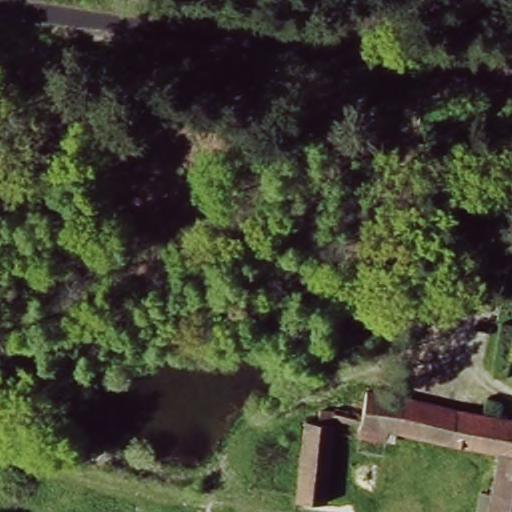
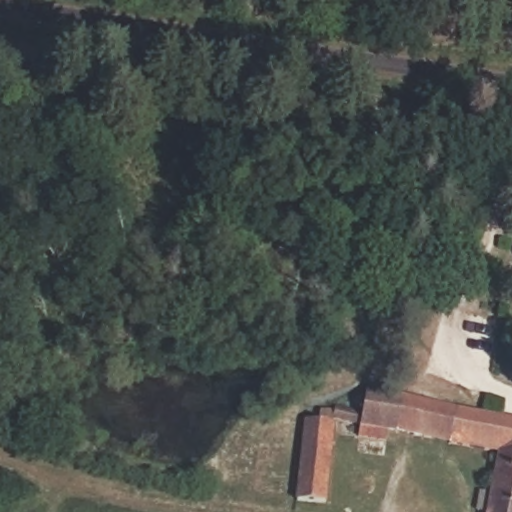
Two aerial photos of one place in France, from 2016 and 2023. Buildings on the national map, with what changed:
unchanged [(512,512),(483,512),(495,451),(388,427),(383,440),(359,436),(369,385),(512,419),(512,512)]
unchanged [(293,507),(302,421),(337,427),(327,500),(293,507)]

